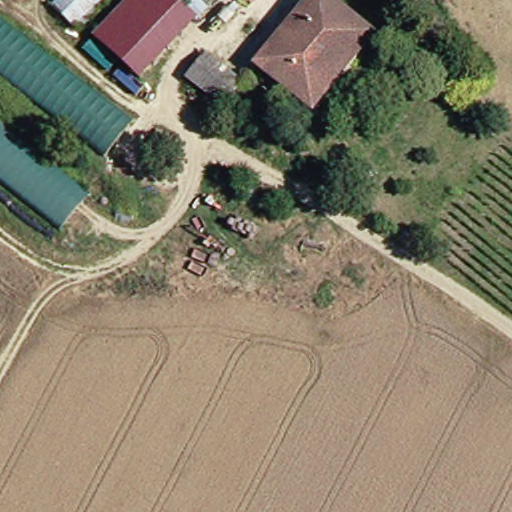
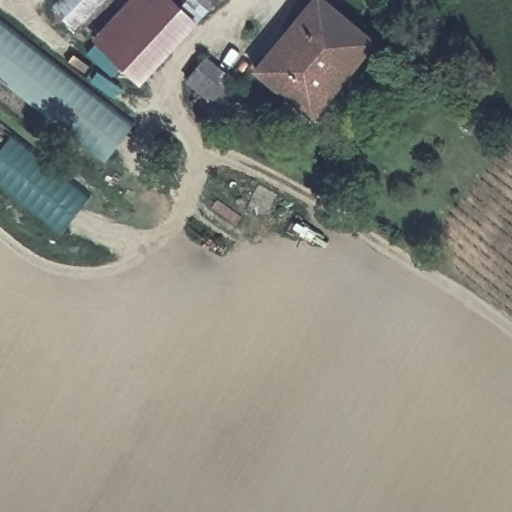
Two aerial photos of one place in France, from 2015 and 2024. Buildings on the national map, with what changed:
unchanged [(113,0),(84,29),(59,8),(68,0),(113,0)]
unchanged [(101,40),(129,11),(139,0),(174,0),(175,1),(185,11),(201,26),(165,61),(144,82),(101,40)]
unchanged [(174,0),(176,0),(175,1),(174,0)]
unchanged [(196,0),(227,0),(201,26),(185,11),(197,1),(196,0)]
unchanged [(323,114),(265,65),(320,0),(342,0),(386,39),(323,114)]
unchanged [(0,22),(132,126),(109,156),(0,72),(0,22)]
unchanged [(206,59),(241,90),(222,111),(187,81),(206,59)]
unchanged [(52,242),(0,200),(0,144),(79,207),(52,242)]

